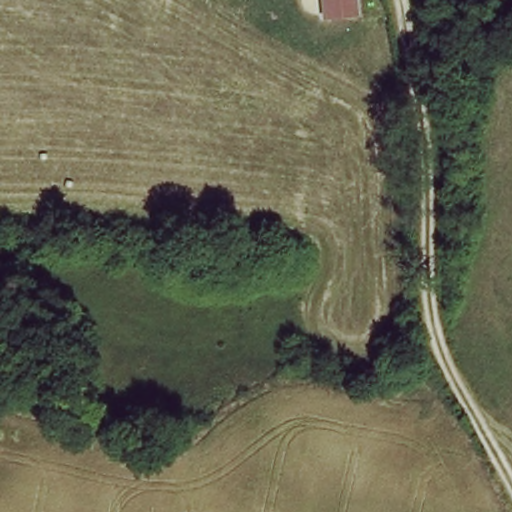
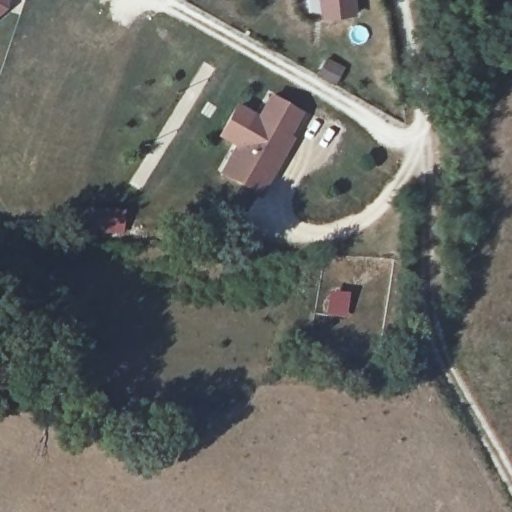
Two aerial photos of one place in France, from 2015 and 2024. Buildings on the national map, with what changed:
new [(0,14),(0,0),(8,0),(7,9),(0,14)]
unchanged [(318,20),(316,0),(353,0),(355,16),(318,20)]
new [(261,196),(221,174),(238,141),(242,144),(272,93),(304,111),(291,135),(295,137),(261,196)]

